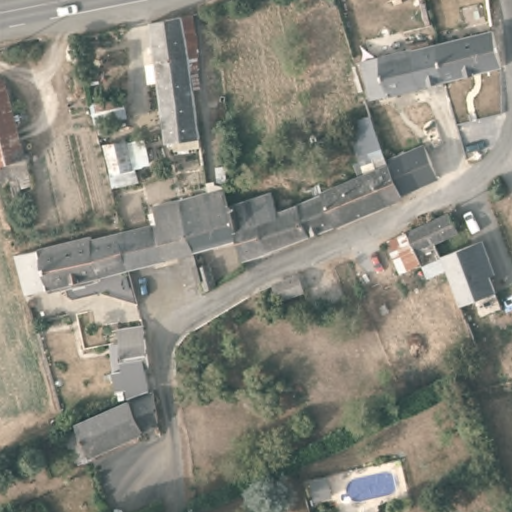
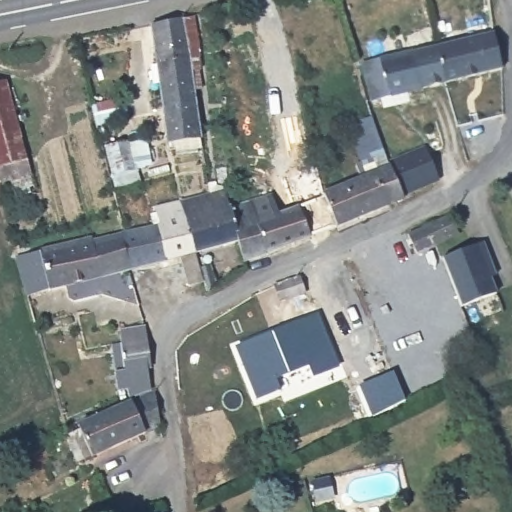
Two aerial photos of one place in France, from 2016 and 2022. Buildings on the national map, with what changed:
unchanged [(194,17),(202,69),(191,70),(202,139),(168,143),(151,25),(184,19),(194,17)]
unchanged [(495,34),(504,69),(447,82),(438,47),(495,34)]
unchanged [(438,47),(447,82),(374,100),(365,64),(438,47)]
unchanged [(12,172),(0,175),(0,76),(7,75),(31,169),(36,186),(16,191),(12,172)]
unchanged [(93,115),(91,104),(122,97),(126,108),(93,115)]
unchanged [(387,157),(375,159),(368,137),(380,134),(387,157)]
unchanged [(108,148),(129,143),(139,182),(117,187),(108,148)]
unchanged [(389,162),(426,147),(440,179),(403,195),(392,167),(389,162)]
unchanged [(392,167),(403,195),(405,199),(337,226),(325,196),(392,167)]
unchanged [(210,193),(209,182),(224,179),(227,187),(231,207),(236,242),(196,252),(181,199),(210,193)]
unchanged [(325,196),(337,226),(271,252),(250,200),(272,192),(280,214),(325,196)]
unchanged [(217,288),(207,292),(206,288),(202,280),(187,285),(180,256),(130,268),(105,275),(27,295),(17,256),(94,237),(95,241),(122,235),(160,225),(157,204),(181,199),(196,252),(199,267),(210,264),(217,288)]
unchanged [(250,200),(271,252),(244,262),(236,242),(231,207),(250,200)]
unchanged [(419,265),(401,271),(388,241),(425,224),(448,212),(457,232),(432,242),(437,257),(440,262),(441,266),(423,273),(419,265)]
unchanged [(478,242),(485,260),(490,272),(484,274),(491,292),(456,306),(449,287),(441,266),(440,262),(437,257),(478,242)]
unchanged [(307,272),(312,287),(287,297),(280,282),(307,272)]
new [(256,401),(233,346),(315,314),(337,369),(313,378),(308,368),(275,381),(280,392),(256,401)]
unchanged [(142,367),(146,386),(129,387),(123,352),(112,353),(111,343),(122,342),(120,330),(145,326),(152,366),(142,367)]
new [(393,370),(407,401),(372,417),(358,385),(393,370)]
unchanged [(77,462),(68,441),(72,439),(70,435),(80,430),(77,425),(126,406),(124,402),(156,388),(161,426),(77,462)]

